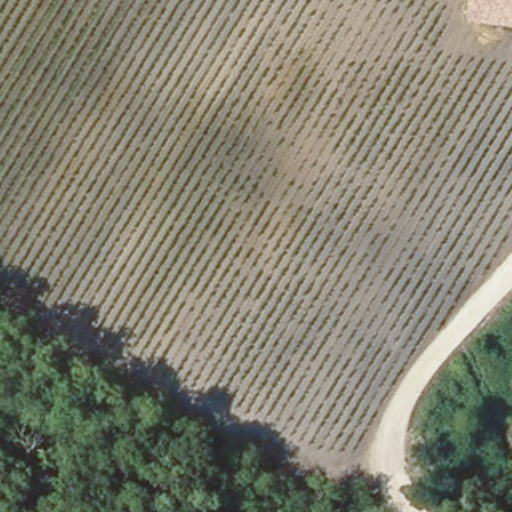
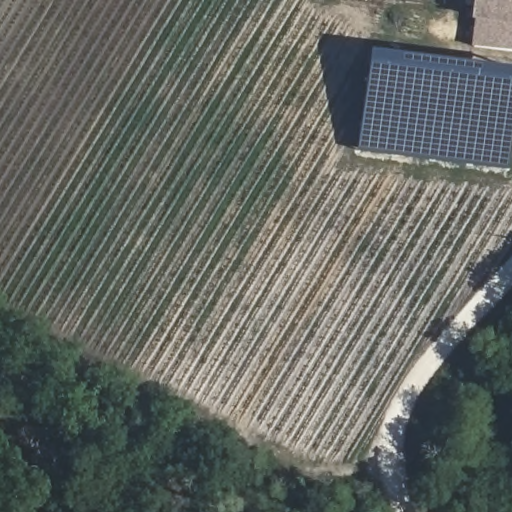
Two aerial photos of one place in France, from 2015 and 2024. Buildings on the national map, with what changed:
unchanged [(470,20),(472,0),(512,0),(512,25),(470,20)]
new [(356,151),(369,51),(512,69),(512,134),(508,171),(356,151)]

